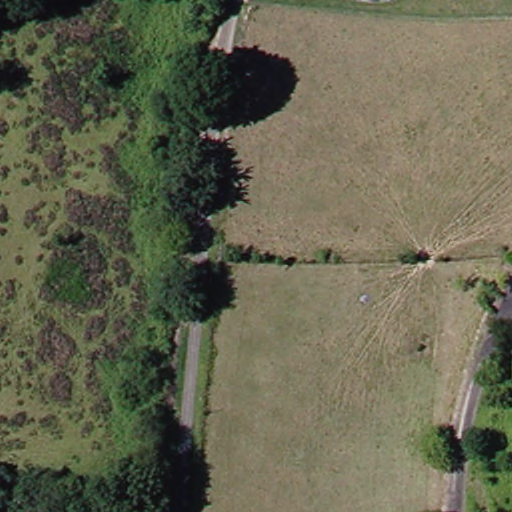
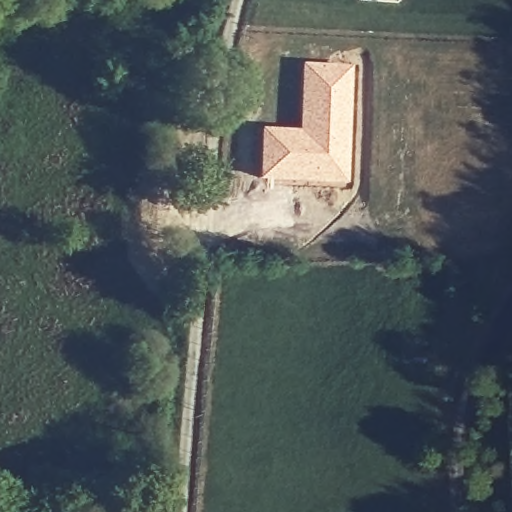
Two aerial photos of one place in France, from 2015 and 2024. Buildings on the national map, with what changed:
new [(260,130),(298,131),(300,64),(353,66),(348,184),(258,181),(260,130)]

